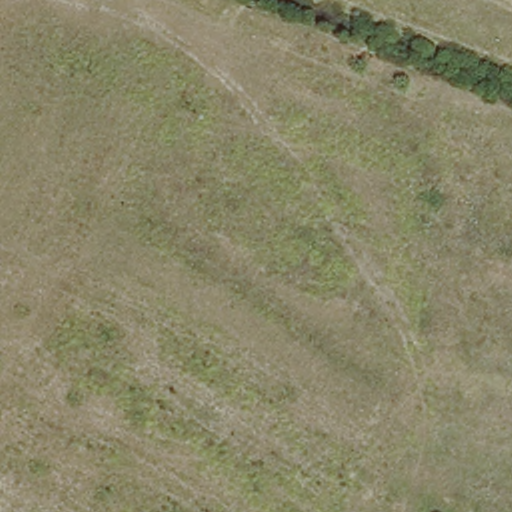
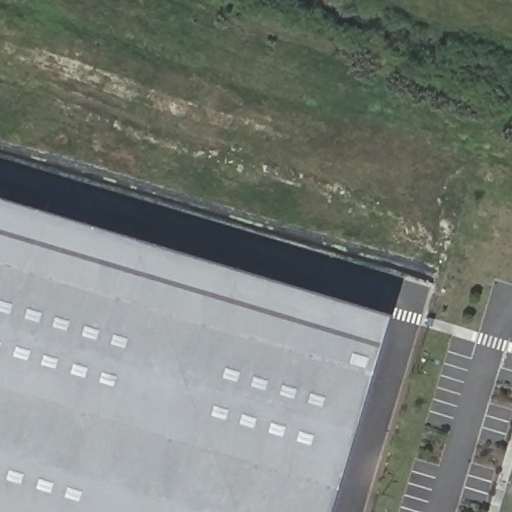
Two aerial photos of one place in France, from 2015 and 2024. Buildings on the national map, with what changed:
new [(377,315),(320,512),(0,512),(0,203),(377,315)]

